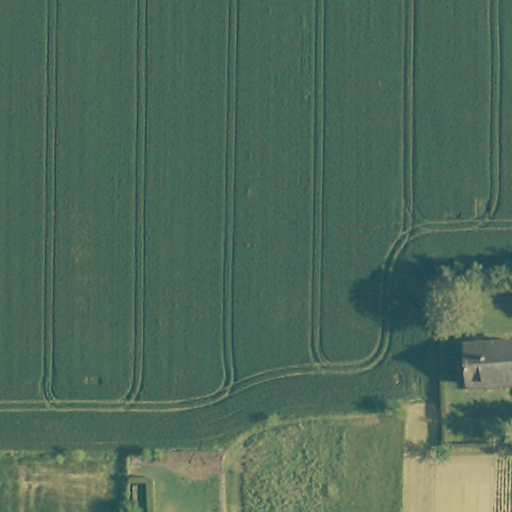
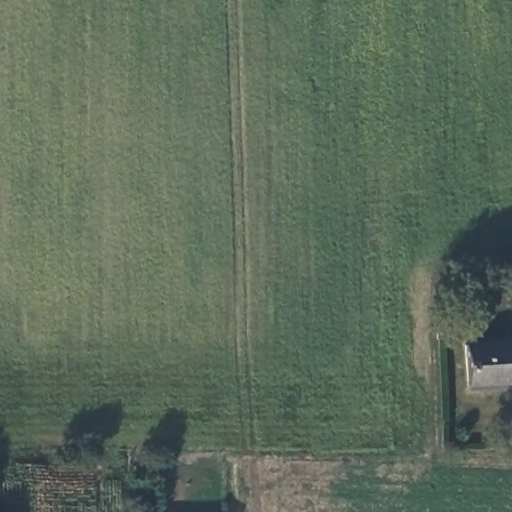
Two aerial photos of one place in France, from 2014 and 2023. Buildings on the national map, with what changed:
unchanged [(512,339),(512,379),(470,384),(465,343),(512,339)]

